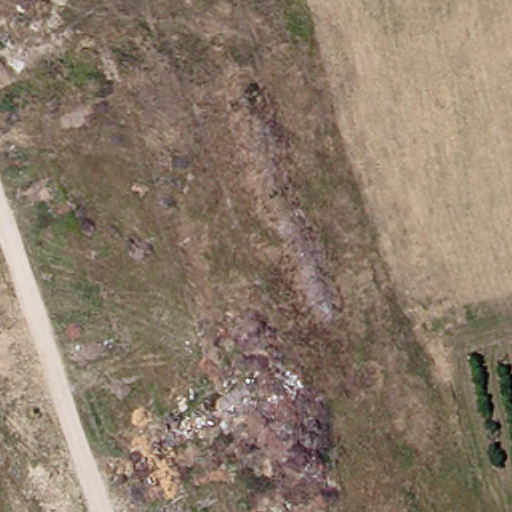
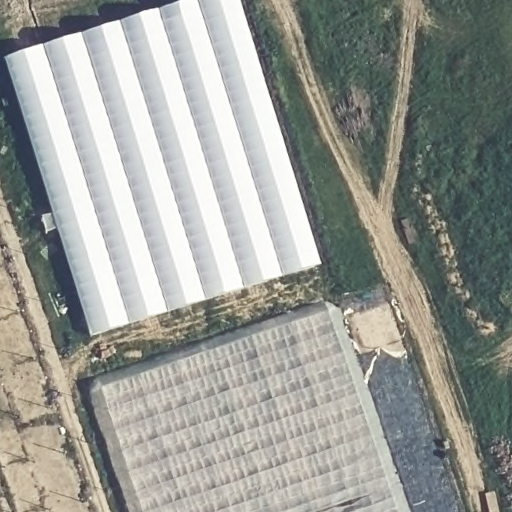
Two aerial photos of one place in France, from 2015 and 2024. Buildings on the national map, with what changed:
new [(322,267),(91,337),(4,59),(193,0),(236,0),(322,267)]
new [(141,512),(99,388),(327,312),(397,512),(141,512)]

